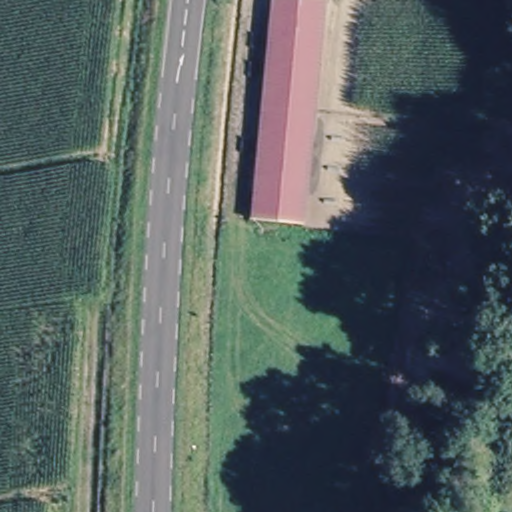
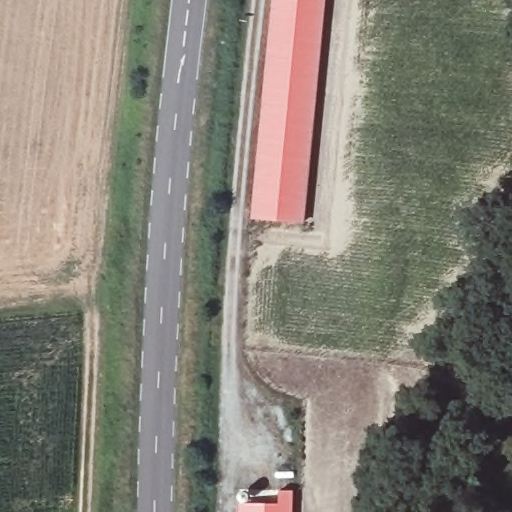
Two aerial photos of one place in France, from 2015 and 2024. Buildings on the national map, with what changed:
unchanged [(299,226),(252,222),(278,0),(324,0),(299,226)]
new [(280,490),(294,490),(293,512),(242,512),(243,504),(279,503),(280,490)]

